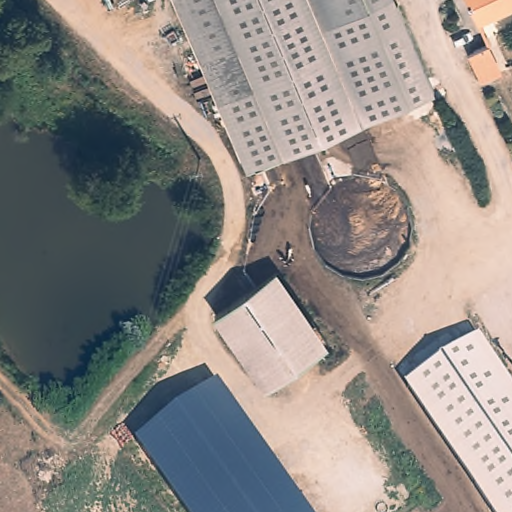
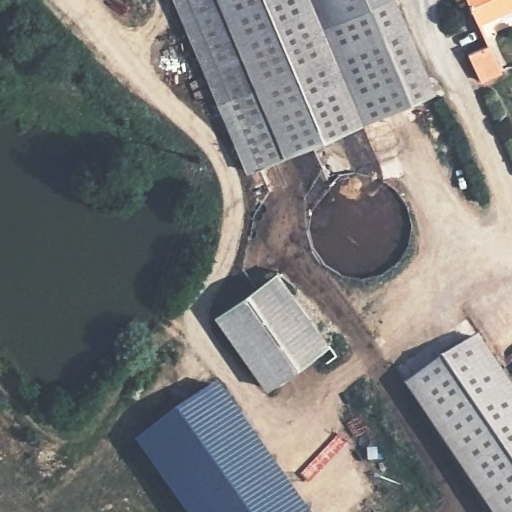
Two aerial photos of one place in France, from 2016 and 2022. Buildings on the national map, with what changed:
unchanged [(363,127),(249,176),(175,0),(309,0),(363,127)]
unchanged [(435,97),(363,127),(309,0),(393,0),(435,97)]
unchanged [(512,11),(478,27),(466,0),(512,0),(512,11)]
unchanged [(333,343),(270,390),(216,317),(282,269),(333,343)]
unchanged [(512,512),(490,512),(407,386),(480,339),(512,387),(512,512)]
unchanged [(185,512),(135,444),(218,386),(311,512),(185,512)]

